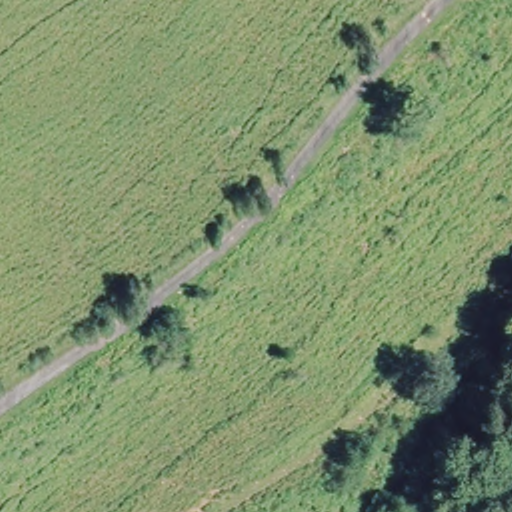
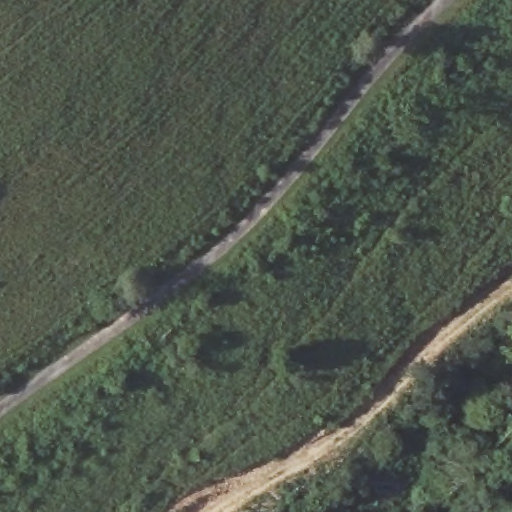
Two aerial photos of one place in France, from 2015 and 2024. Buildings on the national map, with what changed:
[]

